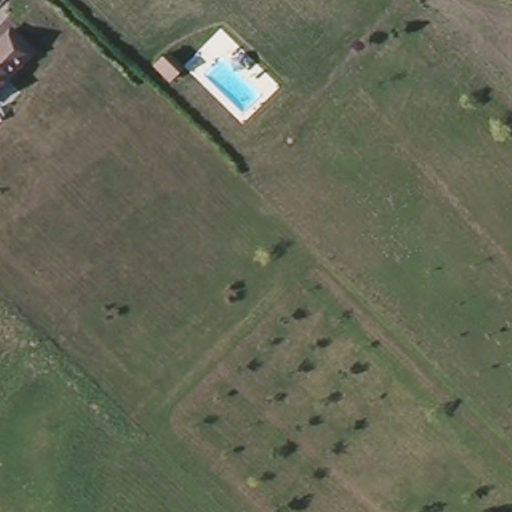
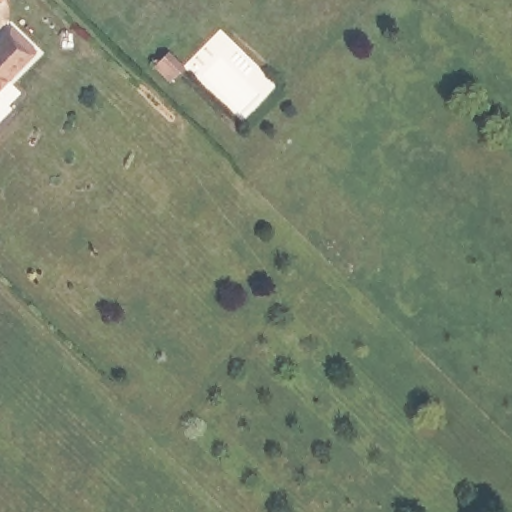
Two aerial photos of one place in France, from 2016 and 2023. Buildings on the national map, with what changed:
unchanged [(0,41),(10,29),(38,54),(0,94),(0,41)]

